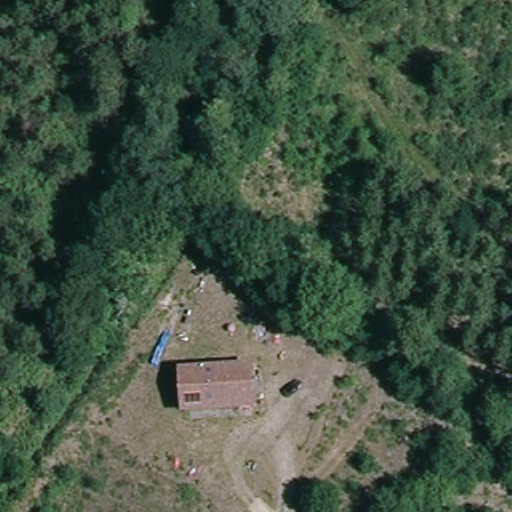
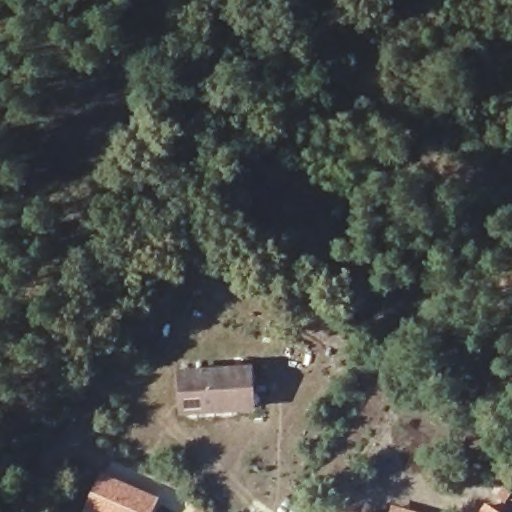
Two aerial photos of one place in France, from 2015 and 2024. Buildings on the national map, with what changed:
unchanged [(259,412),(182,417),(180,368),(255,363),(259,412)]
new [(100,471),(160,497),(153,512),(82,512),(100,471)]
new [(195,504),(208,512),(189,512),(195,504)]
new [(487,504),(499,512),(481,512),(487,504)]

